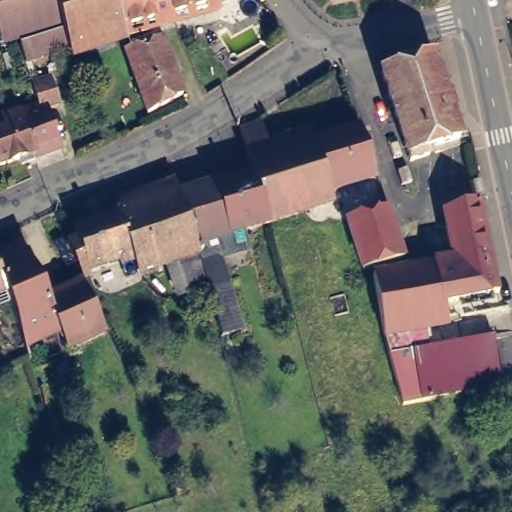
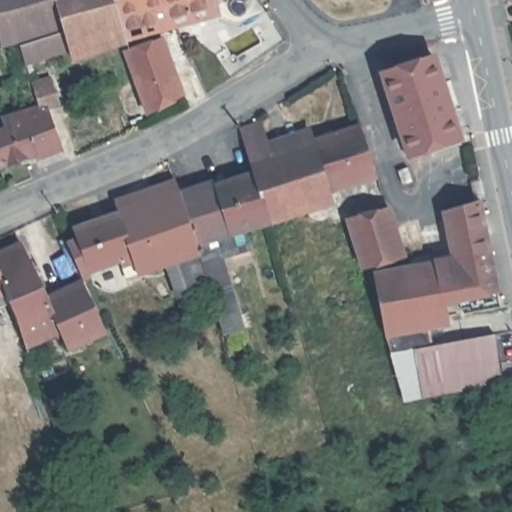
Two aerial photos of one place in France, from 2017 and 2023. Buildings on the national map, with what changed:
unchanged [(25,72),(19,45),(0,52),(0,0),(219,0),(227,22),(65,57),(25,72)]
unchanged [(512,2),(511,0),(512,0),(512,2)]
unchanged [(161,45),(170,71),(175,70),(177,78),(174,80),(180,99),(146,119),(124,59),(161,45)]
unchanged [(379,73),(430,57),(456,139),(424,151),(425,156),(405,163),(405,160),(379,73)]
unchanged [(59,104),(50,108),(63,145),(37,155),(40,161),(25,166),(23,161),(2,168),(0,163),(0,133),(9,129),(5,119),(42,108),(35,90),(52,84),(59,104)]
unchanged [(67,229),(117,211),(113,196),(172,176),(183,192),(249,160),(240,128),(263,118),(274,141),(314,130),(319,138),(365,124),(385,176),(330,188),(340,205),(242,236),(245,256),(232,261),(245,328),(217,337),(204,295),(175,298),(170,268),(133,276),(127,263),(84,278),(67,229)]
unchanged [(465,340),(493,337),(502,385),(403,404),(384,333),(372,276),(371,272),(404,261),(426,256),(429,255),(430,264),(454,259),(447,228),(444,212),(482,200),(499,293),(460,301),(463,321),(465,340)]
unchanged [(360,269),(345,219),(387,207),(403,257),(360,269)]
unchanged [(52,299),(89,288),(100,310),(58,329),(23,345),(7,298),(0,300),(0,257),(25,248),(52,299)]
unchanged [(100,310),(110,337),(69,355),(58,329),(100,310)]

